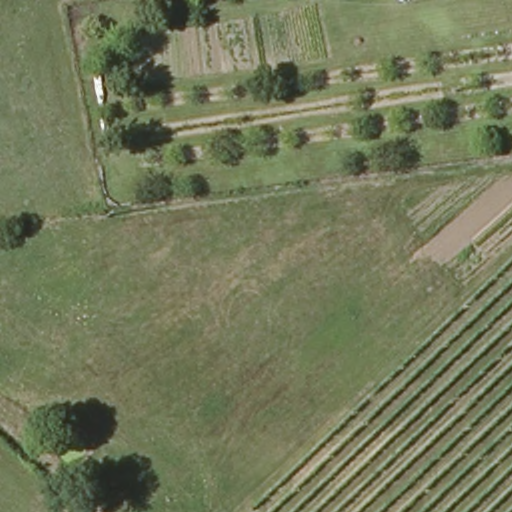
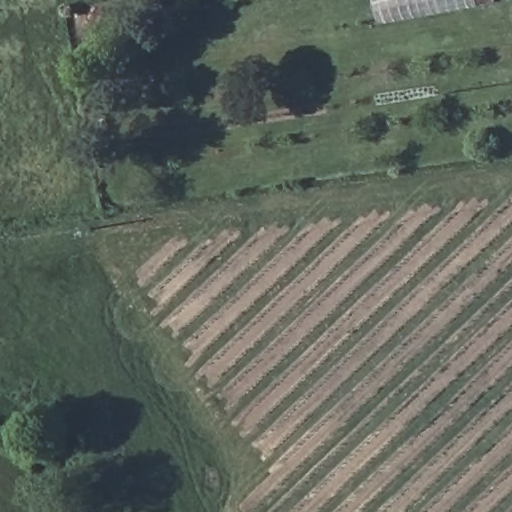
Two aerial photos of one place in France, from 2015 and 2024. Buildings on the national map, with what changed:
new [(478,0),(479,6),(380,26),(375,0),(478,0)]

